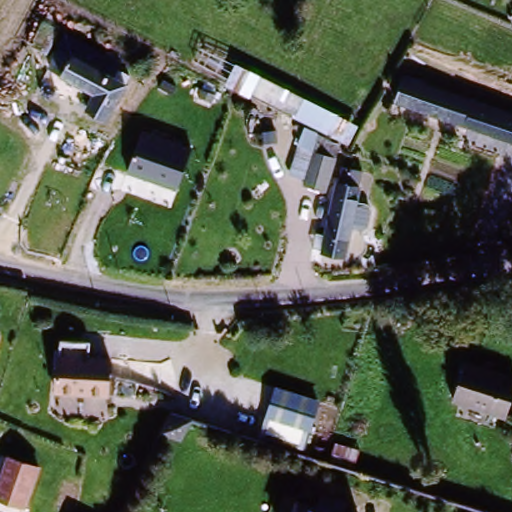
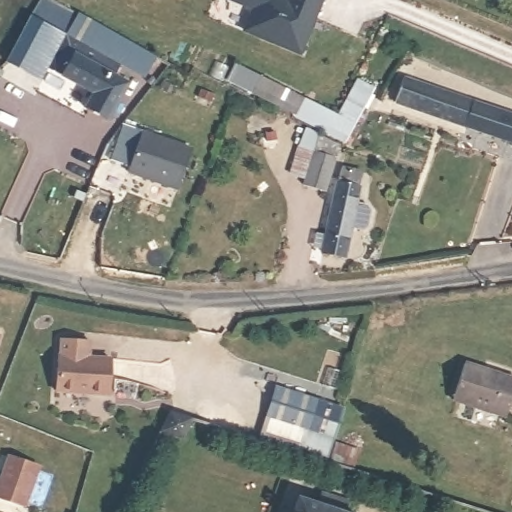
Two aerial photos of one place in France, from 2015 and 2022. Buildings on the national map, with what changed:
new [(75,39),(122,65),(119,72),(72,44),(54,75),(47,71),(40,80),(7,64),(40,0),(48,0),(85,21),(80,29),(75,39)]
new [(290,0),(326,0),(301,58),(245,34),(255,12),(228,0),(286,0),(290,2),(290,0)]
new [(85,21),(164,64),(154,82),(75,39),(85,21)]
new [(124,74),(118,84),(131,92),(110,128),(90,116),(98,101),(54,75),(72,44),(124,74)]
demolished [(66,83),(79,62),(122,86),(110,107),(66,83)]
unchanged [(227,86),(237,63),(359,127),(348,146),(227,86)]
unchanged [(383,104),(393,75),(463,102),(453,129),(383,104)]
unchanged [(463,102),(512,121),(512,151),(453,129),(463,102)]
unchanged [(190,151),(176,192),(126,173),(140,133),(190,151)]
unchanged [(306,179),(291,173),(302,147),(316,152),(335,159),(321,190),(303,185),(306,179)]
unchanged [(333,182),(338,165),(360,171),(355,187),(339,255),(314,250),(333,182)]
unchanged [(109,396),(56,397),(55,362),(107,360),(109,396)]
unchanged [(512,389),(512,402),(505,425),(451,407),(462,372),(512,389)]
unchanged [(321,402),(311,433),(265,420),(275,388),(321,402)]
demolished [(172,397),(200,407),(191,433),(164,422),(172,397)]
new [(170,418),(187,425),(182,442),(165,437),(170,418)]
unchanged [(0,496),(0,479),(0,477),(4,479),(14,457),(42,469),(25,507),(0,496)]
unchanged [(343,506),(341,512),(290,512),(294,502),(317,511),(321,497),(343,506)]

